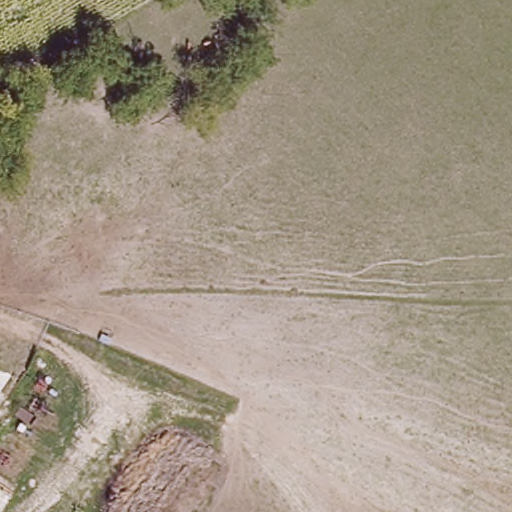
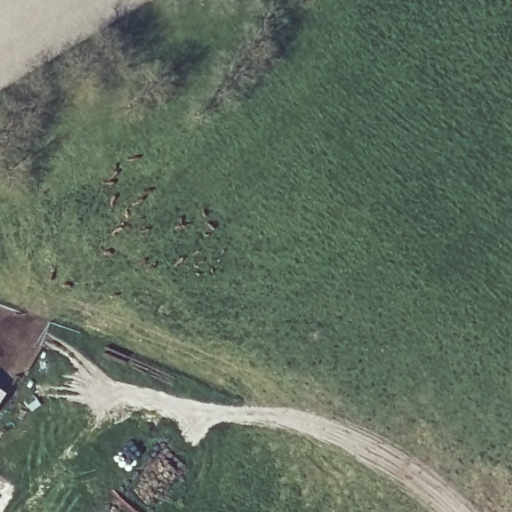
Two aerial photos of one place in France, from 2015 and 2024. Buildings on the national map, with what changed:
unchanged [(1,400),(0,401),(0,399),(1,400)]

